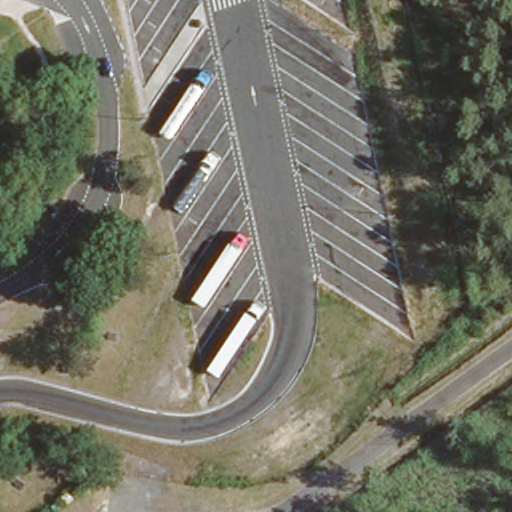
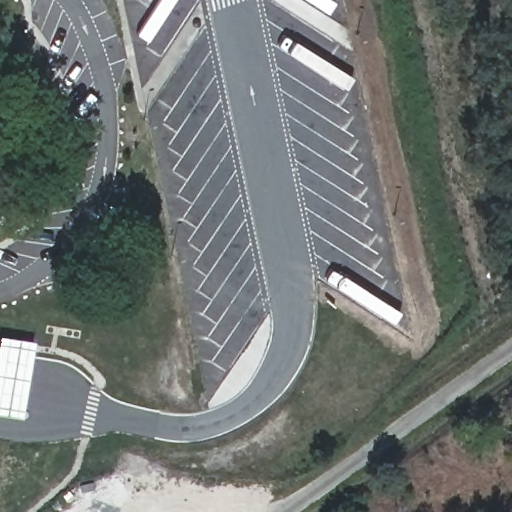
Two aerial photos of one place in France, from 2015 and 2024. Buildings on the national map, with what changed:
demolished [(71,326),(73,341),(40,345),(40,330),(71,326)]
new [(20,422),(0,419),(0,341),(18,345),(32,347),(20,422)]

